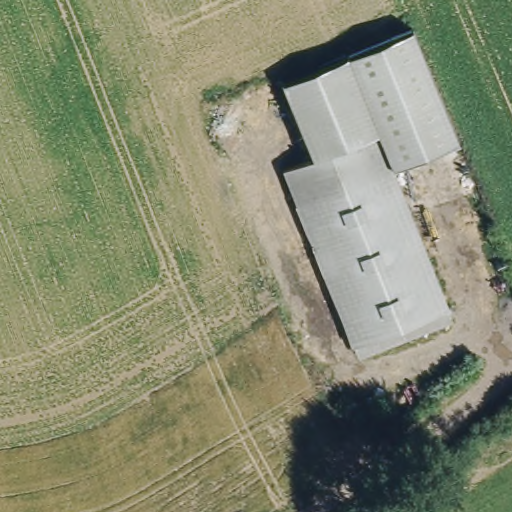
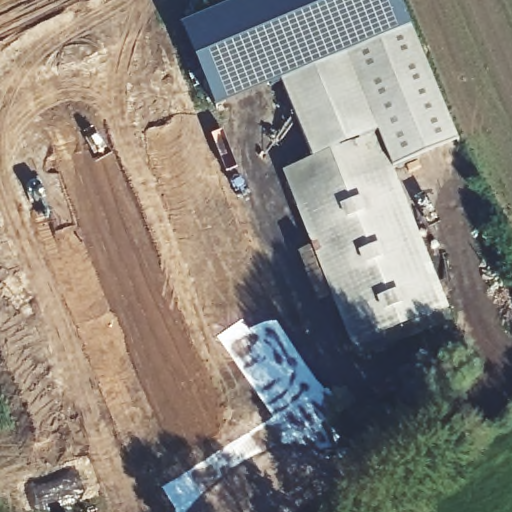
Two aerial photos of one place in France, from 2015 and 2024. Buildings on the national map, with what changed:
new [(214,108),(181,26),(245,0),(399,0),(411,30),(280,84),(214,108)]
unchanged [(373,136),(311,160),(280,84),(411,30),(454,141),(386,169),(373,136)]
unchanged [(373,136),(443,310),(350,348),(279,173),(373,136)]
unchanged [(443,310),(448,321),(354,358),(350,348),(443,310)]

